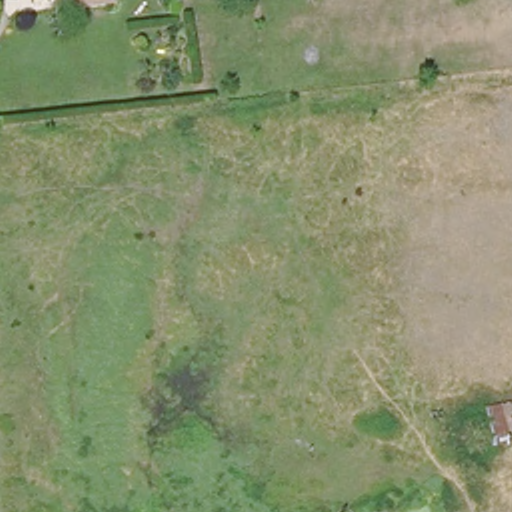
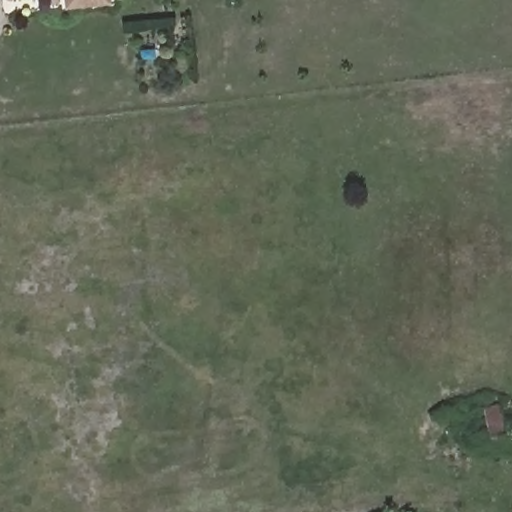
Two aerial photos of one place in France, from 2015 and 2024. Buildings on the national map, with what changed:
unchanged [(108,3),(66,9),(65,0),(107,0),(108,3)]
unchanged [(512,403),(512,441),(501,442),(483,445),(479,408),(506,405),(512,403)]

